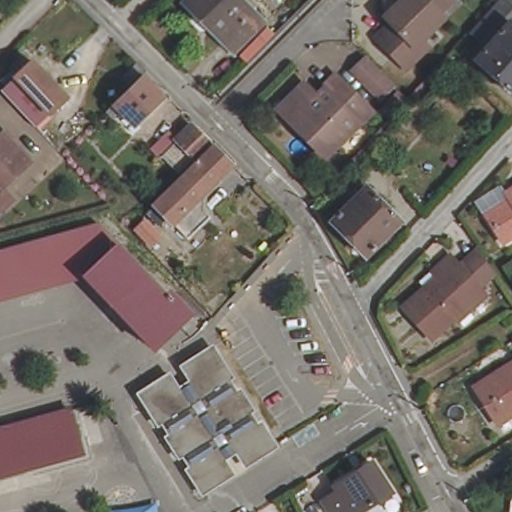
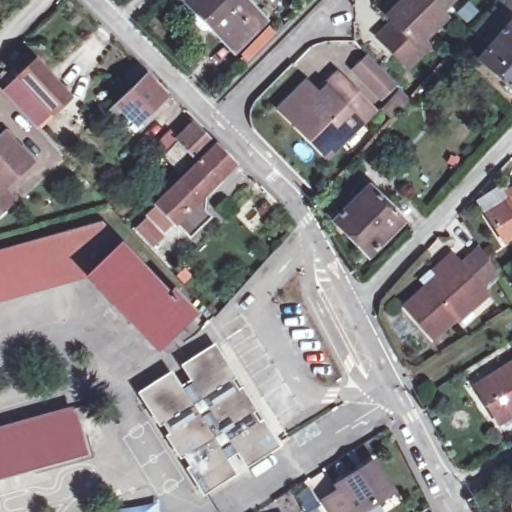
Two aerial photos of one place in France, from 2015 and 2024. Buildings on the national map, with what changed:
unchanged [(196,22),(196,17),(200,13),(189,2),(191,0),(247,0),(269,22),(238,52),(214,27),(210,31),(205,31),(196,22)]
unchanged [(412,59),(381,27),(397,12),(392,7),(399,0),(448,0),(443,6),(448,11),(427,31),(433,37),(428,44),(412,59)]
unchanged [(493,59),(487,55),(492,49),(496,44),(490,39),(493,35),(487,31),(489,27),(491,26),(501,15),(510,5),(511,5),(512,6),(512,25),(512,92),(485,69),(493,59)]
unchanged [(447,72),(438,63),(447,54),(453,47),(462,56),(447,72)]
unchanged [(81,98),(48,130),(14,93),(32,75),(25,68),(35,58),(42,65),(46,61),(81,98)]
unchanged [(395,90),(381,104),(364,86),(356,78),(370,65),(377,72),(389,84),(395,90)]
unchanged [(138,122),(133,118),(128,124),(121,117),(157,82),(175,101),(149,128),(153,132),(146,141),(133,128),(138,122)]
unchanged [(291,130),(276,116),(301,90),(315,102),(335,82),(367,114),(327,155),(323,160),(291,130)]
unchanged [(382,117),(403,98),(409,105),(390,126),(382,117)]
unchanged [(186,175),(169,157),(199,127),(216,145),(186,175)]
unchanged [(8,144),(11,142),(37,169),(10,195),(21,207),(0,226),(0,137),(8,144)]
unchanged [(239,166),(203,203),(217,219),(194,242),(174,222),(164,232),(151,219),(222,148),(239,166)]
unchanged [(360,164),(380,183),(370,194),(350,175),(360,164)]
unchanged [(370,263),(336,229),(370,194),(404,227),(370,263)]
unchanged [(512,204),(512,223),(504,209),(512,204)]
unchanged [(179,306),(194,322),(159,356),(89,283),(0,308),(0,260),(101,232),(167,301),(169,300),(176,307),(179,306)]
unchanged [(458,316),(435,337),(407,307),(441,277),(436,272),(443,266),(455,255),(465,266),(481,252),(499,271),(483,286),(487,291),(492,296),(463,322),(458,316)]
unchanged [(179,372),(187,386),(198,378),(190,366),(221,347),(239,377),(233,381),(240,391),(245,388),(258,408),(253,412),(259,423),(265,420),(279,442),(250,461),(242,448),(231,455),(238,467),(208,486),(195,463),(200,460),(193,449),(188,452),(175,432),(181,427),(174,417),(169,421),(152,393),(150,390),(162,382),(179,372)]
unchanged [(481,387),(512,367),(512,417),(503,423),(481,387)]
unchanged [(81,412),(94,455),(0,482),(0,434),(81,412)]
unchanged [(378,469),(396,499),(374,512),(334,512),(331,507),(346,498),(343,491),(378,469)]

